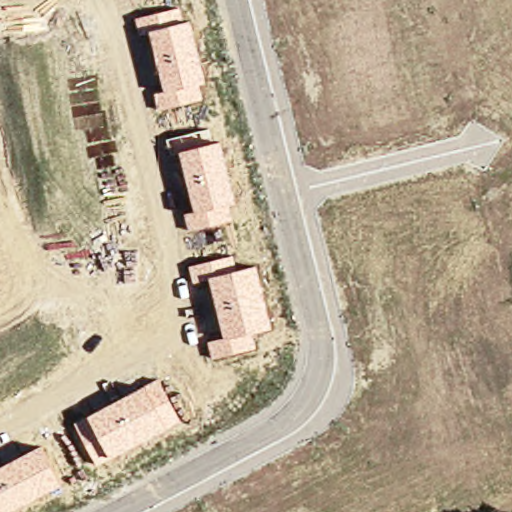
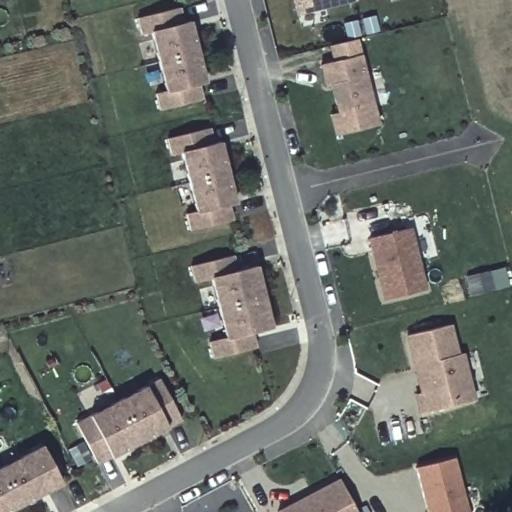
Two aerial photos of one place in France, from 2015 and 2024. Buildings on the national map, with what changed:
new [(355,0),(298,14),(295,0),(355,0)]
unchanged [(182,20),(192,18),(207,83),(200,85),(204,103),(160,112),(156,94),(164,91),(150,32),(137,35),(134,17),(180,7),(182,20)]
new [(323,66),(336,63),(332,47),(358,40),(380,126),(337,137),(332,116),(335,115),(328,87),(323,66)]
unchanged [(210,127),(214,143),(222,140),(236,203),(229,205),(232,221),(232,222),(189,232),(184,213),(192,211),(180,157),(171,159),(166,139),(210,127)]
new [(411,229),(426,291),(386,301),(371,240),(411,229)]
unchanged [(235,255),(238,269),(258,264),(274,328),(254,334),(257,348),(211,361),(206,341),(224,337),(209,282),(192,285),(187,267),(235,255)]
new [(408,337),(451,327),(458,357),(463,356),(475,403),(422,416),(417,397),(423,395),(417,371),(408,337)]
unchanged [(182,421),(96,464),(72,422),(159,377),(182,421)]
unchanged [(10,512),(0,512),(0,466),(41,444),(65,484),(10,512)]
new [(455,460),(467,512),(428,512),(417,469),(455,460)]
new [(341,481),(358,512),(280,512),(302,501),(313,496),(341,481)]

